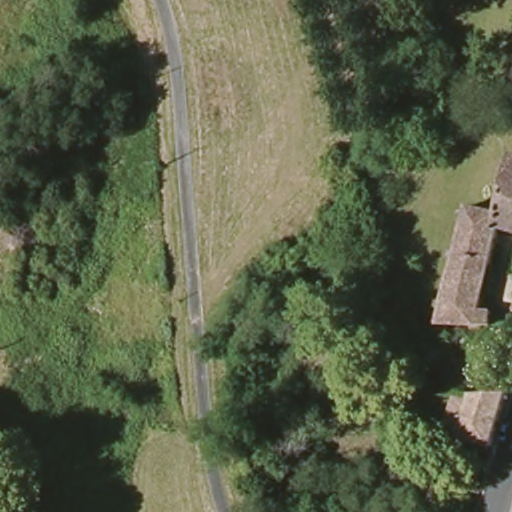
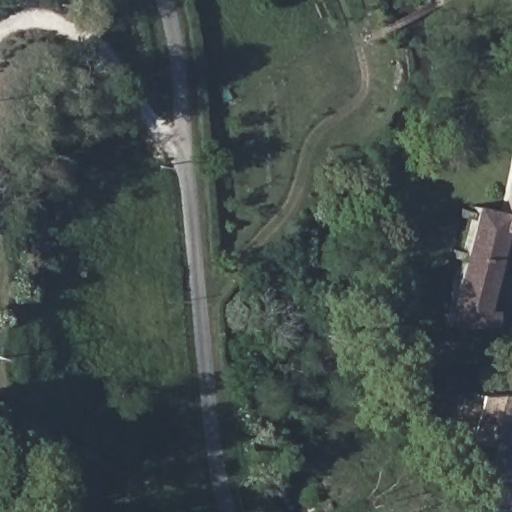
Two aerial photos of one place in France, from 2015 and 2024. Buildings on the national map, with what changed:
unchanged [(489,311),(499,311),(499,323),(446,323),(449,310),(440,306),(442,299),(452,300),(463,258),(453,256),(456,247),(465,250),(474,218),(464,216),(466,208),(476,210),(477,205),(507,212),(512,192),(512,227),(506,225),(489,311)]
unchanged [(457,427),(465,401),(478,406),(480,398),(493,397),(512,397),(512,408),(500,450),(468,439),(470,431),(457,427)]

